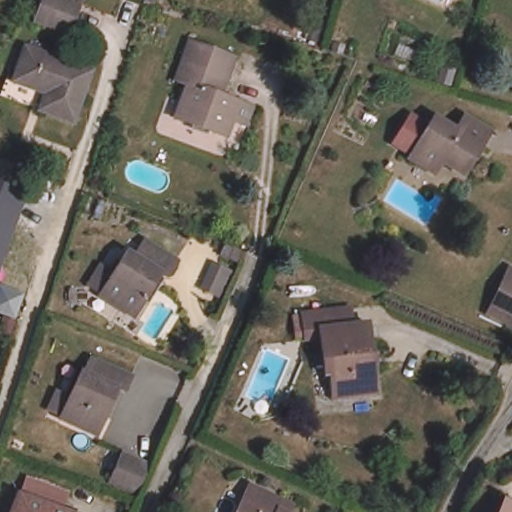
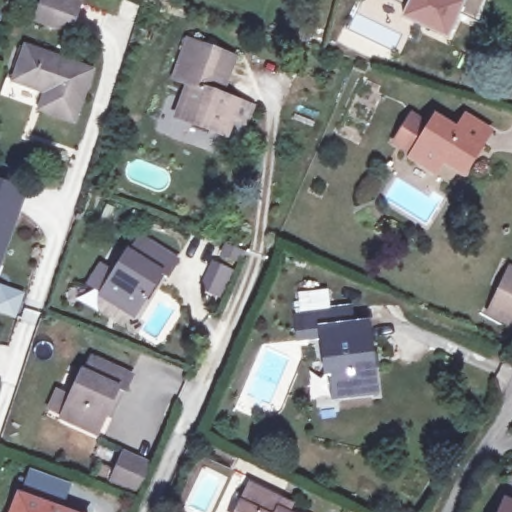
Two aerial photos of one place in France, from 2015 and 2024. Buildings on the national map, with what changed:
unchanged [(33,17),(40,0),(76,0),(65,28),(33,17)]
new [(459,11),(447,40),(402,18),(406,7),(391,0),(485,0),(477,19),(459,11)]
unchanged [(234,125),(221,120),(215,136),(166,117),(178,83),(166,79),(173,63),(181,40),(226,58),(211,95),(228,102),(241,107),(234,125)]
unchanged [(69,115),(36,104),(42,88),(9,76),(22,44),(87,67),(69,115)]
unchanged [(459,177),(439,165),(432,176),(409,162),(432,122),(453,134),(462,119),(485,133),(459,177)]
unchanged [(0,265),(0,181),(24,190),(0,265)]
unchanged [(104,261),(118,270),(132,248),(138,252),(148,238),(178,258),(169,274),(163,270),(138,311),(105,290),(92,281),(104,261)]
unchanged [(231,260),(218,254),(221,244),(235,250),(231,260)]
unchanged [(489,306),(498,286),(507,264),(512,266),(512,316),(489,306)]
unchanged [(344,301),(346,319),(361,317),(369,387),(328,392),(324,356),(319,357),(316,333),(300,335),(299,327),(298,308),(344,301)]
unchanged [(53,391),(68,397),(81,369),(88,372),(95,357),(129,374),(122,390),(115,387),(95,432),(59,416),(63,410),(48,404),(53,391)]
unchanged [(132,491),(106,481),(118,451),(144,461),(132,491)]
unchanged [(69,491),(62,512),(53,512),(18,499),(25,477),(69,491)]
unchanged [(248,481),(274,493),(289,500),(284,510),(288,512),(233,512),(248,481)]
unchanged [(14,497),(52,512),(8,512),(14,497)]
unchanged [(512,503),(512,512),(499,512),(504,500),(512,503)]

